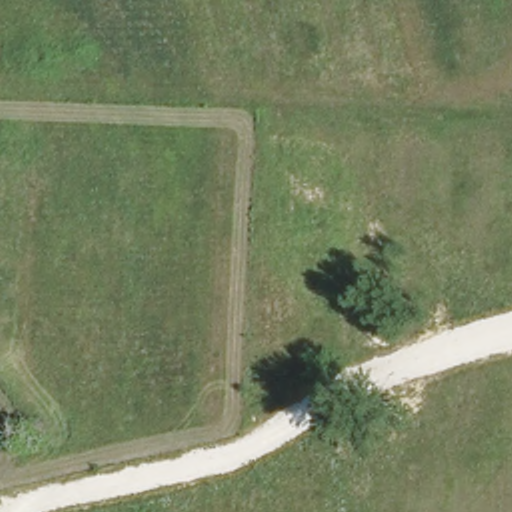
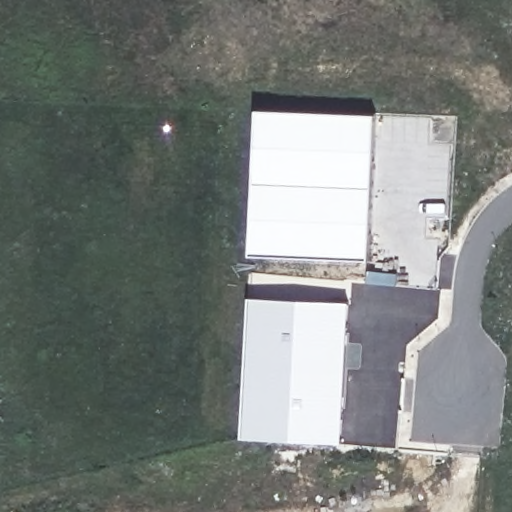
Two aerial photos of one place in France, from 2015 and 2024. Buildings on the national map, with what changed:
new [(375,115),(368,260),(249,255),(255,112),(375,115)]
new [(342,441),(241,437),(249,296),(349,301),(342,441)]

